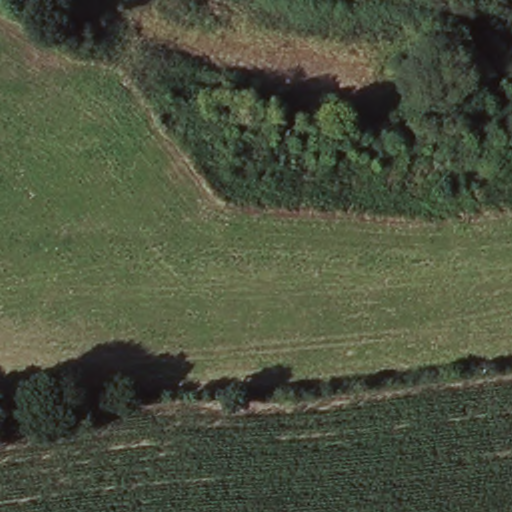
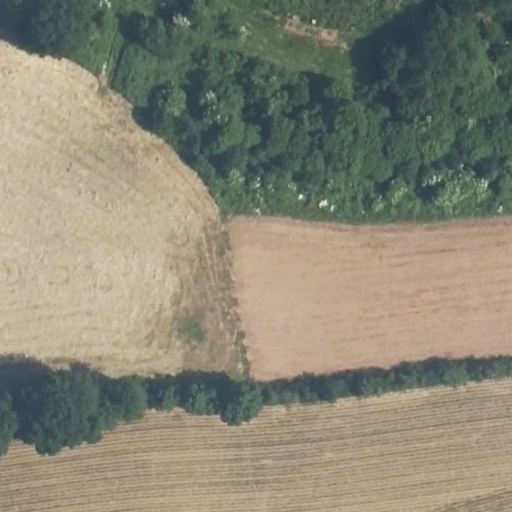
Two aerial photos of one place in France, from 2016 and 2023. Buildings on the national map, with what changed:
[]

